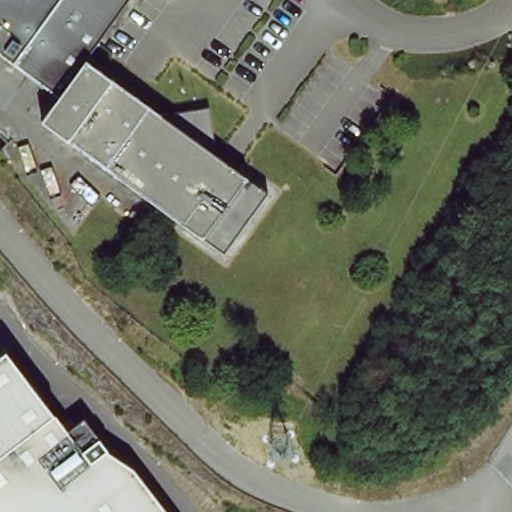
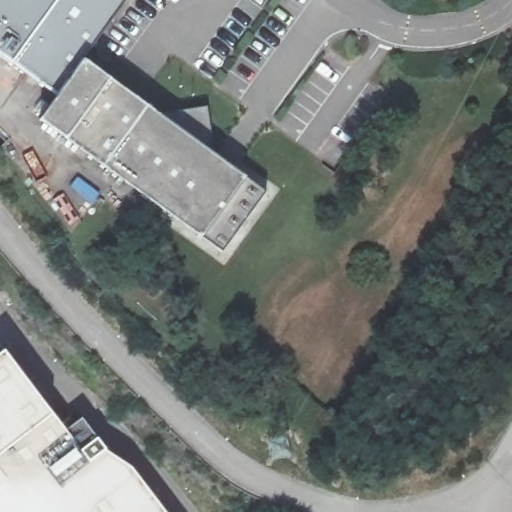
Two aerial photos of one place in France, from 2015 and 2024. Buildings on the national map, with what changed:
unchanged [(0,0),(134,0),(93,60),(65,96),(0,50),(0,0)]
unchanged [(93,60),(171,117),(211,110),(216,151),(271,187),(226,252),(48,121),(65,96),(93,60)]
unchanged [(73,433),(89,420),(112,450),(136,466),(170,512),(0,512),(0,364),(11,355),(73,433)]

